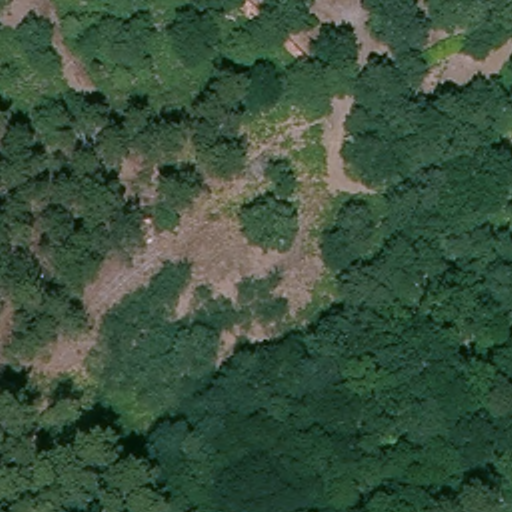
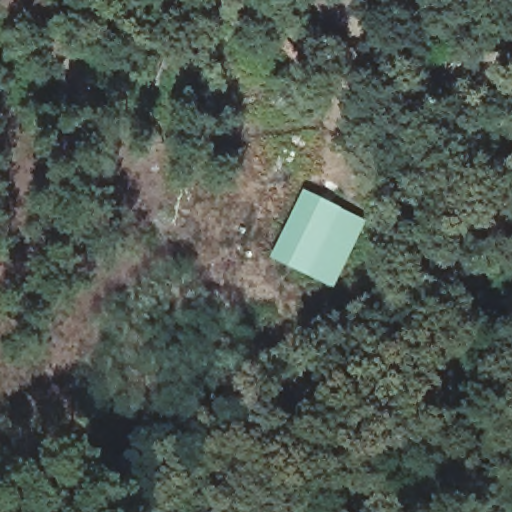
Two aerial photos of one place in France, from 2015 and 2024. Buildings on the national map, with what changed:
new [(304,189),(369,222),(336,288),(270,257),(304,189)]

